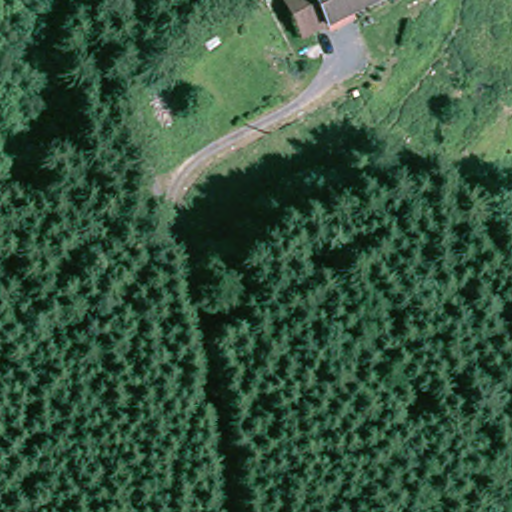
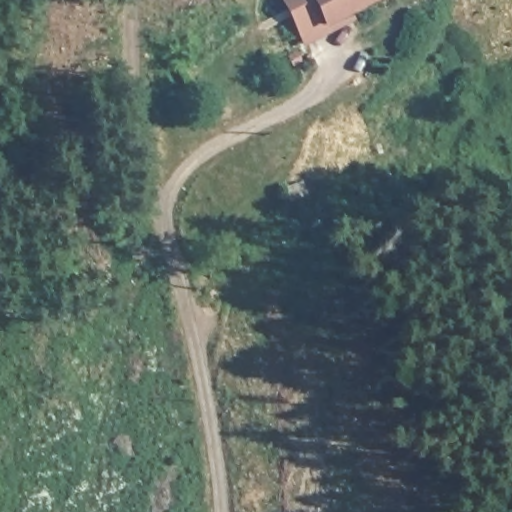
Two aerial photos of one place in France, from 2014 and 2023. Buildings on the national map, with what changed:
unchanged [(292,4),(290,0),(390,0),(310,41),(292,4)]
unchanged [(258,39),(253,30),(263,25),(267,34),(258,39)]
unchanged [(400,149),(412,154),(402,178),(390,173),(400,149)]

